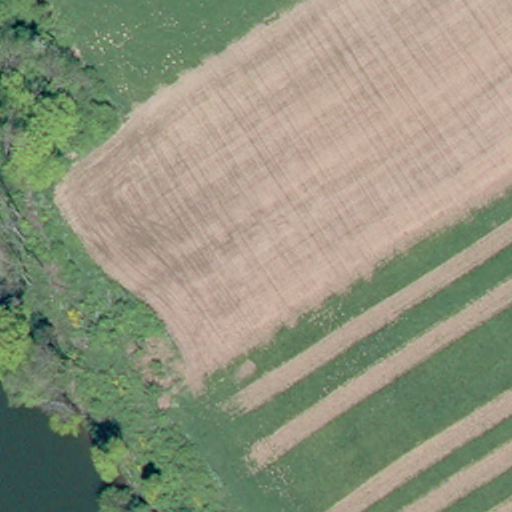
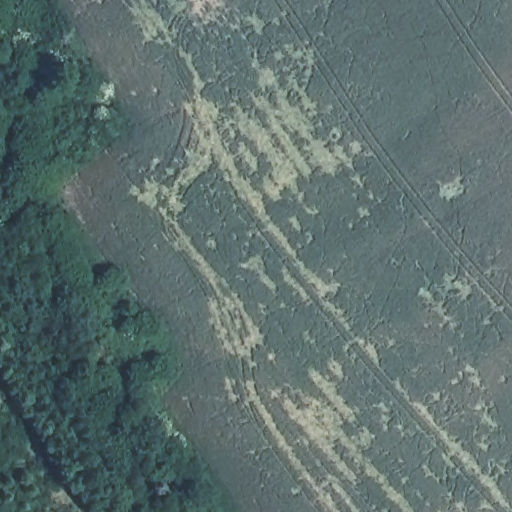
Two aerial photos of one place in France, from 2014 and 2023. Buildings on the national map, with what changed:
[]

